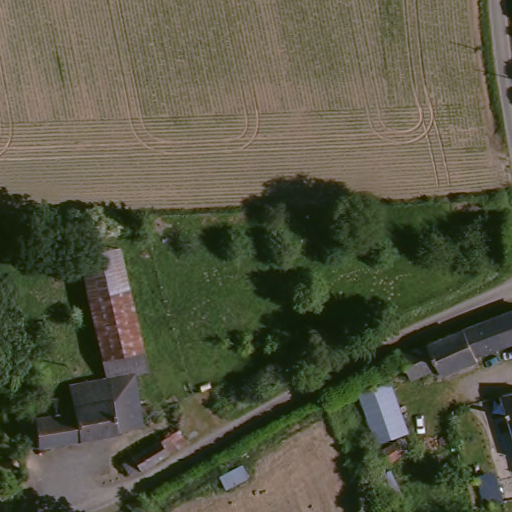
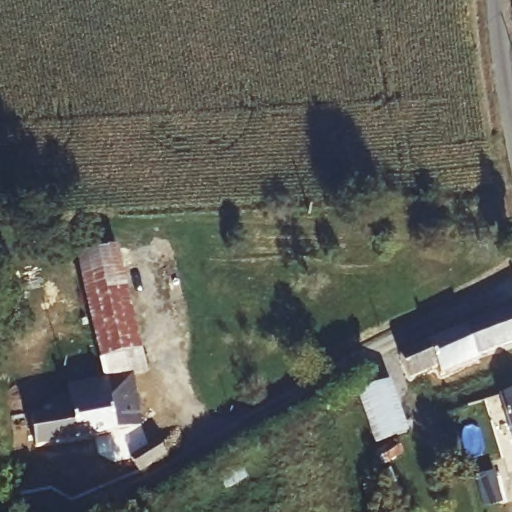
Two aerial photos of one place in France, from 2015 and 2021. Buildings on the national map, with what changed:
unchanged [(121,259),(132,383),(118,384),(114,385),(109,386),(97,387),(94,388),(84,262),(121,259)]
unchanged [(512,307),(512,340),(478,354),(466,326),(512,307)]
unchanged [(466,326),(478,354),(480,358),(443,375),(440,367),(410,380),(400,355),(466,326)]
unchanged [(387,383),(408,431),(377,444),(355,396),(387,383)]
unchanged [(56,397),(56,394),(59,392),(76,390),(94,388),(97,387),(109,386),(114,385),(118,384),(120,401),(125,437),(93,443),(22,450),(20,419),(27,417),(26,410),(27,407),(29,406),(30,404),(34,403),(38,402),(39,400),(42,398),(56,397)]
unchanged [(501,390),(512,388),(512,444),(501,390)]
unchanged [(399,445),(406,455),(385,470),(379,460),(399,445)]
unchanged [(158,449),(165,462),(156,467),(142,475),(131,480),(126,481),(122,468),(147,455),(158,449)]
unchanged [(8,512),(0,512),(0,502),(5,501),(8,512)]

